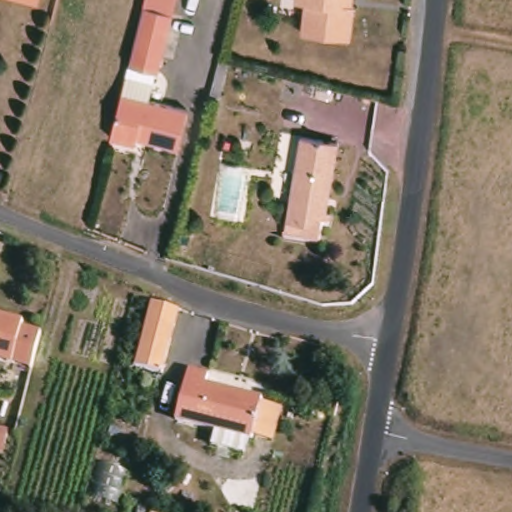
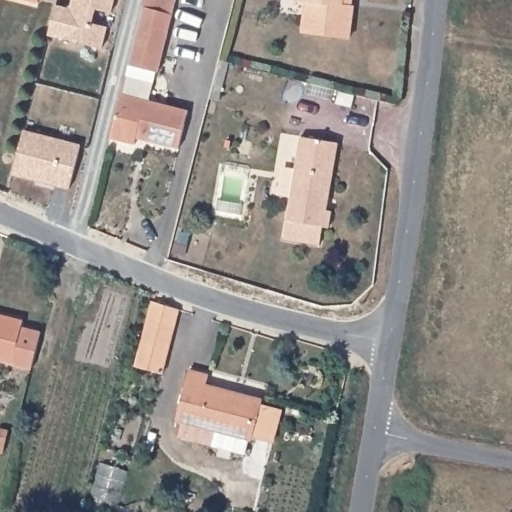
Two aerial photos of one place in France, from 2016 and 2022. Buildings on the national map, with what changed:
unchanged [(11,0),(39,0),(37,6),(11,0)]
new [(96,9),(92,24),(106,28),(102,47),(48,35),(56,4),(70,8),(72,0),(115,0),(111,12),(96,9)]
unchanged [(129,64),(142,9),(144,6),(145,0),(175,0),(172,14),(171,17),(159,72),(129,64)]
unchanged [(348,5),(345,38),(297,32),(301,2),(291,1),(292,0),(347,0),(346,5),(348,5)]
new [(129,64),(156,71),(149,100),(186,110),(189,115),(122,97),(129,64)]
unchanged [(135,150),(110,143),(122,97),(189,115),(179,155),(146,146),(136,143),(135,150)]
new [(70,189),(11,174),(23,130),(80,144),(70,189)]
unchanged [(332,148),(320,214),(325,214),(322,231),(316,230),(312,248),(278,241),(296,141),(332,148)]
unchanged [(175,309),(159,373),(135,367),(147,301),(175,309)]
unchanged [(21,332),(29,334),(24,354),(16,353),(12,367),(0,364),(0,318),(24,324),(21,332)]
unchanged [(204,381),(202,389),(258,405),(247,445),(171,425),(185,375),(204,381)]

